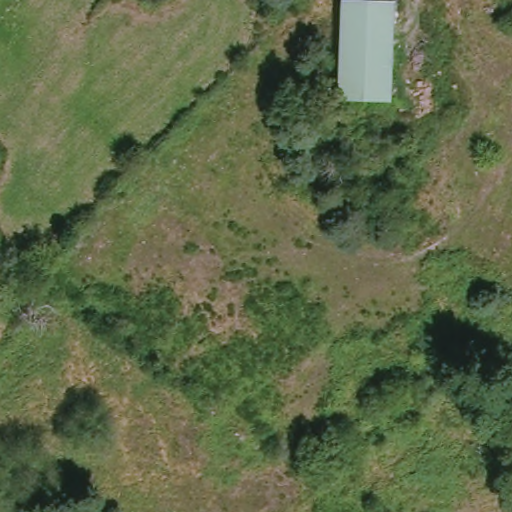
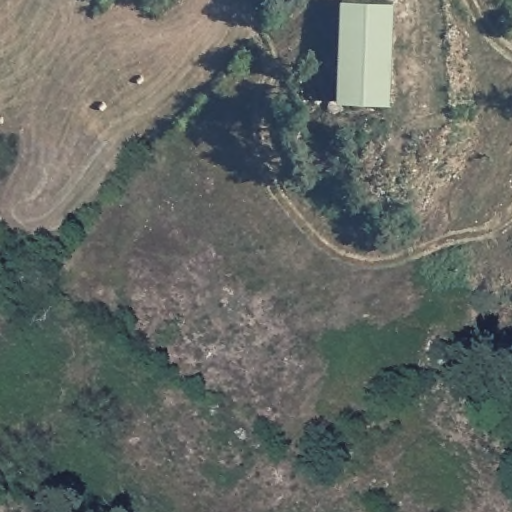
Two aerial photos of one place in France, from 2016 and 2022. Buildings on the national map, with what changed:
unchanged [(390,102),(339,100),(344,0),(365,0),(395,1),(390,102)]

